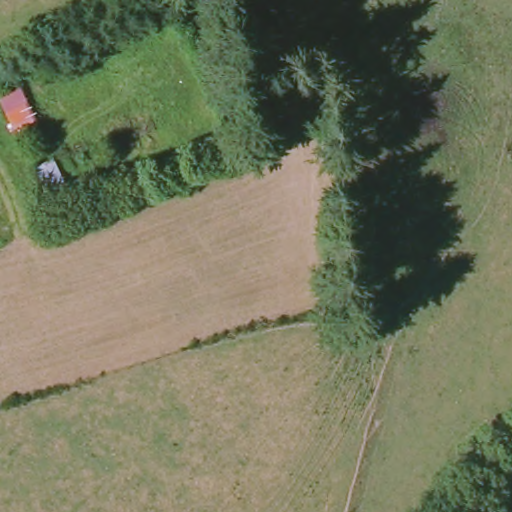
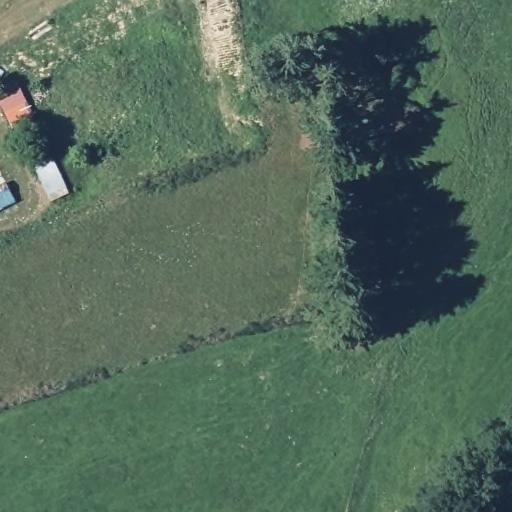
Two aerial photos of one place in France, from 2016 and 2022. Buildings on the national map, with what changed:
unchanged [(75,195),(15,224),(7,205),(43,184),(37,170),(57,160),(75,195)]

